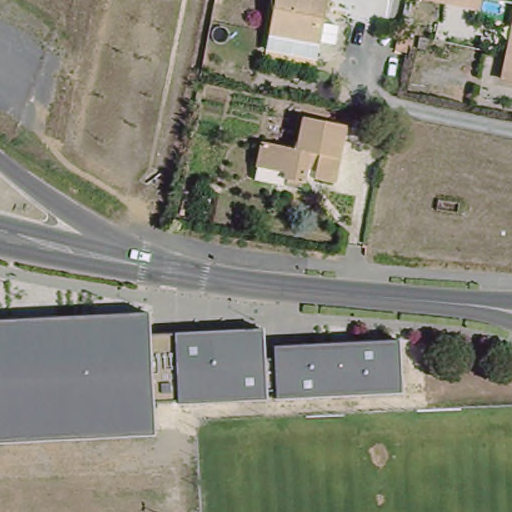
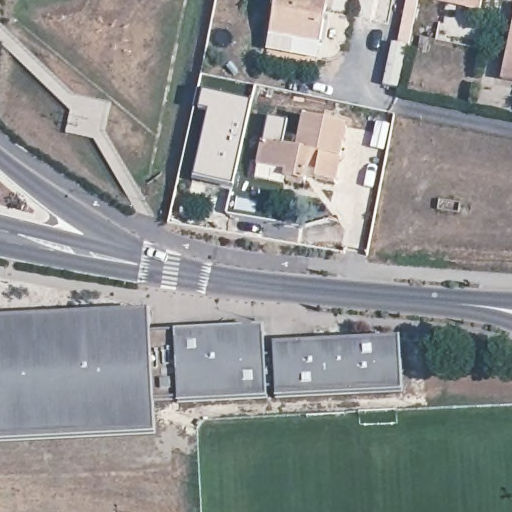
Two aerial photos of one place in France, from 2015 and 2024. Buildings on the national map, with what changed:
unchanged [(268,37),(274,0),(325,0),(317,46),(268,37)]
unchanged [(430,0),(478,0),(475,10),(430,0)]
unchanged [(512,17),(512,80),(501,77),(512,17)]
new [(207,112),(197,109),(200,90),(252,101),(231,188),(191,178),(207,112)]
unchanged [(289,175),(262,167),(267,141),(299,148),(305,119),(350,129),(338,184),(319,180),(322,166),(310,163),(305,188),(288,185),(289,175)]
unchanged [(154,311),(154,332),(182,331),(267,325),(267,344),(404,336),(405,387),(184,401),(158,402),(158,433),(0,440),(0,321),(154,311)]

